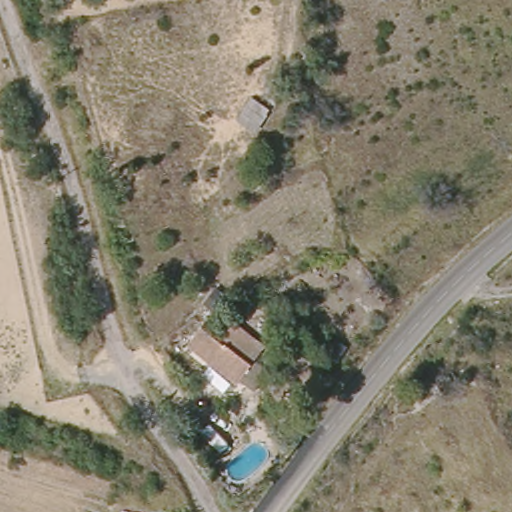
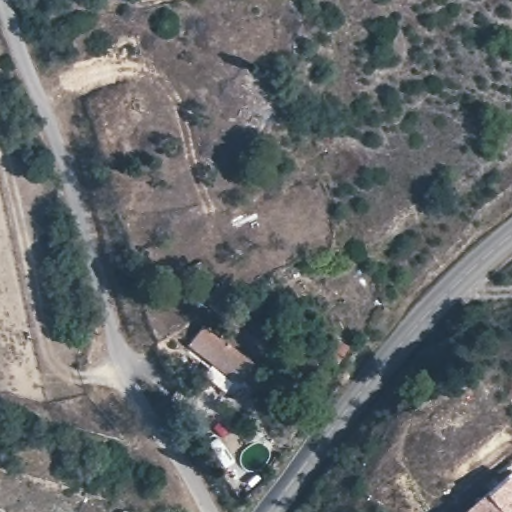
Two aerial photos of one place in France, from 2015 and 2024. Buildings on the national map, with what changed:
unchanged [(197,340),(213,320),(230,333),(245,315),(267,333),(264,337),(273,344),(247,378),(197,340)]
new [(464,512),(509,473),(512,477),(512,512),(464,512)]

